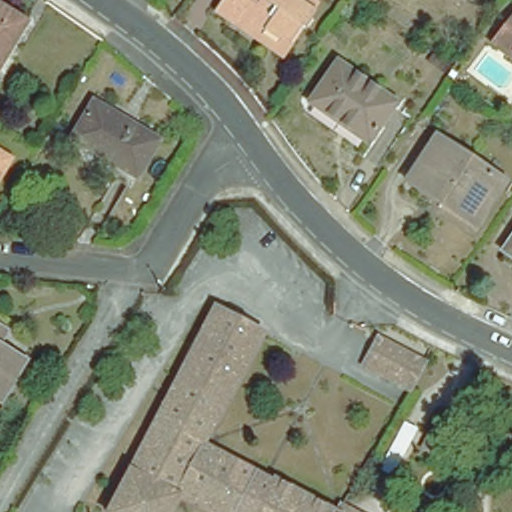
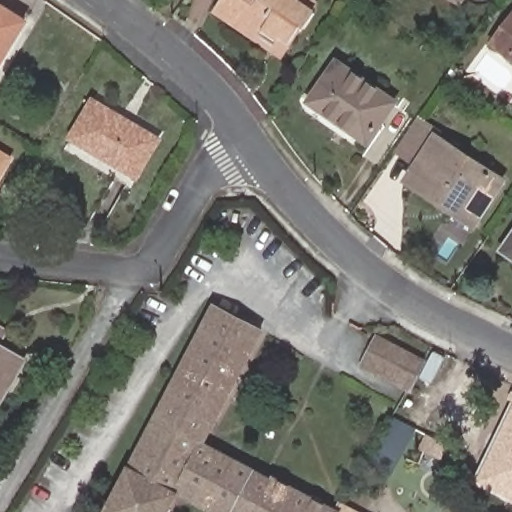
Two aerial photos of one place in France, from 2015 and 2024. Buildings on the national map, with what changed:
unchanged [(267,44),(239,25),(218,11),(226,0),(296,0),(314,13),(307,25),(285,57),(280,53),(267,44)]
unchanged [(454,0),(463,0),(461,4),(454,0)]
unchanged [(0,7),(25,22),(0,62),(0,7)]
unchanged [(490,44),(512,16),(512,60),(490,44)]
unchanged [(368,142),(309,102),(337,61),(396,102),(368,142)]
unchanged [(137,179),(70,140),(93,101),(160,139),(137,179)]
unchanged [(450,207),(409,179),(437,136),(504,182),(479,216),(474,223),(450,207)]
unchanged [(0,153),(9,159),(0,173),(0,153)]
unchanged [(505,250),(512,240),(512,254),(505,250)]
unchanged [(179,489),(167,512),(108,512),(214,308),(260,332),(202,443),(258,472),(255,478),(271,487),(275,481),(333,512),(222,512),(179,489)]
unchanged [(0,343),(0,333),(5,336),(0,343)]
unchanged [(408,388),(364,365),(377,338),(422,362),(408,388)]
unchanged [(0,351),(24,365),(0,405),(0,404),(0,351)]
new [(511,402),(507,400),(512,392),(512,503),(472,484),(511,402)]
new [(399,422),(414,430),(392,472),(377,465),(399,422)]
unchanged [(448,445),(441,457),(422,447),(429,435),(448,445)]
unchanged [(340,505),(341,505),(343,507),(340,512),(337,512),(340,505)]
unchanged [(343,507),(354,512),(340,512),(343,507)]

